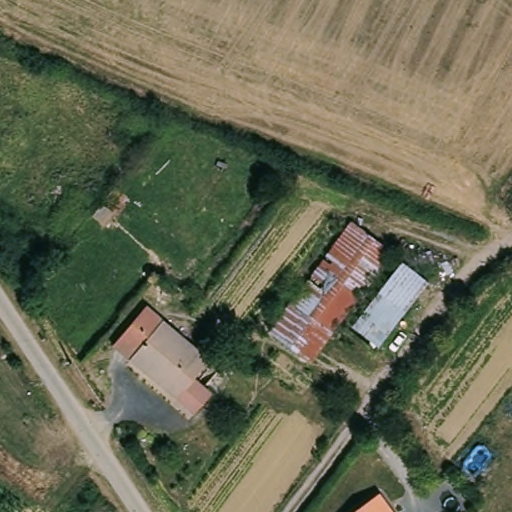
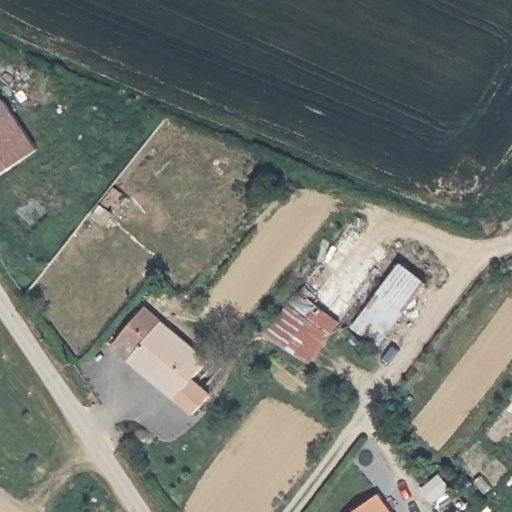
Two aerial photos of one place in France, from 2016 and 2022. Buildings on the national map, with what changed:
new [(0,176),(0,93),(38,150),(0,176)]
unchanged [(297,295),(353,218),(392,247),(337,326),(297,295)]
unchanged [(410,261),(431,282),(385,345),(357,323),(410,261)]
unchanged [(315,357),(275,325),(297,295),(337,326),(315,357)]
unchanged [(149,305),(212,356),(199,372),(217,390),(202,410),(135,356),(151,337),(133,323),(149,305)]
unchanged [(400,512),(357,512),(386,493),(400,512)]

